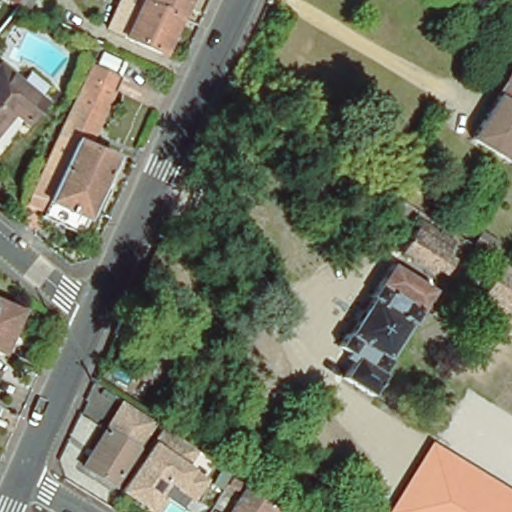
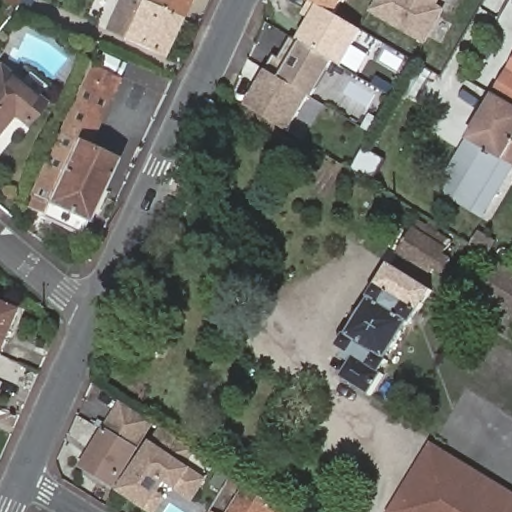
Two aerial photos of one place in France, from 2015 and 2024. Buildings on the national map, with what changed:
unchanged [(28,12),(4,0),(34,0),(28,12)]
unchanged [(143,2),(144,0),(186,0),(178,18),(143,2)]
new [(336,16),(312,2),(308,0),(346,0),(336,16)]
new [(441,5),(447,9),(427,45),(372,13),(379,0),(443,0),(441,5)]
unchanged [(162,53),(124,36),(140,1),(143,2),(178,18),(162,53)]
new [(343,67),(335,62),(300,41),(312,19),(304,15),(312,2),(364,32),(343,67)]
new [(313,98),(312,97),(282,79),(268,71),(276,57),(282,60),(294,37),(300,41),(335,62),(313,98)]
unchanged [(95,53),(124,66),(92,133),(117,143),(82,221),(45,204),(46,199),(33,193),(72,107),(70,106),(95,53)]
unchanged [(470,131),(512,58),(512,156),(470,131)]
unchanged [(11,112),(0,126),(0,67),(42,101),(25,123),(11,112)]
new [(291,133),(247,107),(268,71),(282,79),(312,97),(291,133)]
new [(473,214),(436,192),(466,139),(503,161),(473,214)]
unchanged [(453,252),(437,277),(401,254),(416,229),(453,252)]
unchanged [(498,243),(491,255),(472,245),(479,232),(498,243)]
unchanged [(512,267),(512,333),(480,314),(509,265),(512,267)]
unchanged [(431,291),(410,326),(408,325),(386,361),(388,362),(380,375),(383,376),(370,397),(341,379),(353,359),(336,348),(345,335),(348,336),(371,300),(368,298),(389,266),(431,291)]
unchanged [(0,354),(0,303),(18,311),(0,354)]
new [(120,323),(172,346),(165,361),(114,338),(120,323)]
unchanged [(119,402),(150,421),(131,451),(99,432),(119,402)]
unchanged [(187,499),(161,481),(151,496),(157,500),(149,512),(146,512),(117,492),(157,431),(159,431),(186,450),(189,452),(178,468),(184,472),(194,455),(226,476),(216,494),(198,482),(187,499)]
unchanged [(99,432),(131,451),(109,487),(78,468),(99,432)]
unchanged [(512,490),(512,512),(388,512),(432,441),(512,490)]
unchanged [(274,512),(239,512),(250,495),(274,512)]

